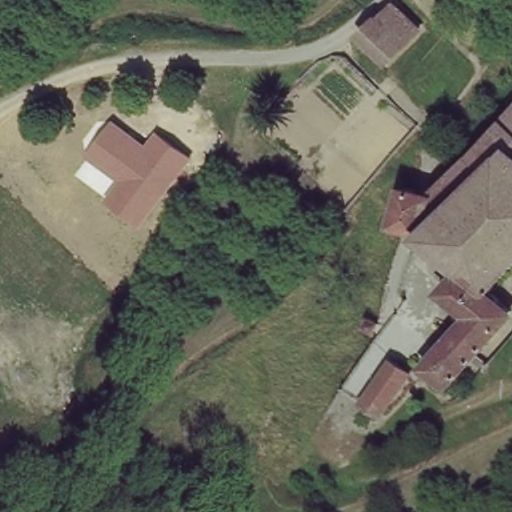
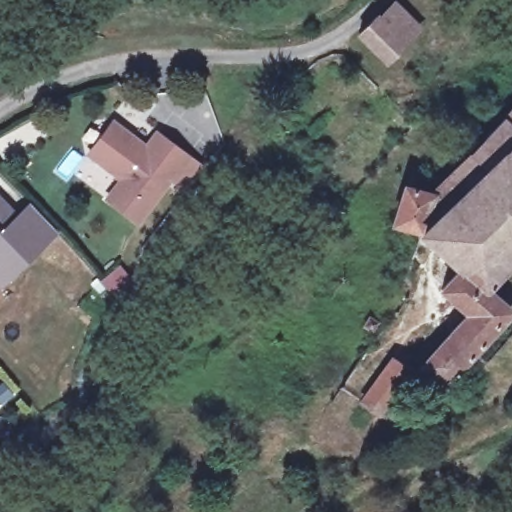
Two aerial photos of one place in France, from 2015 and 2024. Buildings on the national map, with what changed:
unchanged [(418,27),(385,62),(359,37),(390,0),(393,0),(418,27)]
unchanged [(512,261),(487,292),(507,313),(451,389),(422,369),(465,311),(436,293),(454,264),(392,221),(409,187),(430,198),(512,105),(512,261)]
unchanged [(116,119),(150,144),(160,129),(195,155),(140,225),(110,204),(123,184),(89,155),(116,119)]
new [(17,213),(30,201),(58,232),(0,288),(0,195),(17,213)]
new [(117,268),(131,284),(112,301),(98,284),(117,268)]
unchanged [(406,376),(366,428),(348,413),(388,362),(406,376)]

